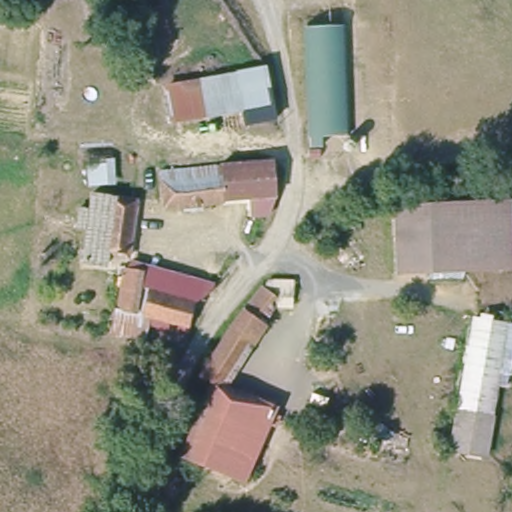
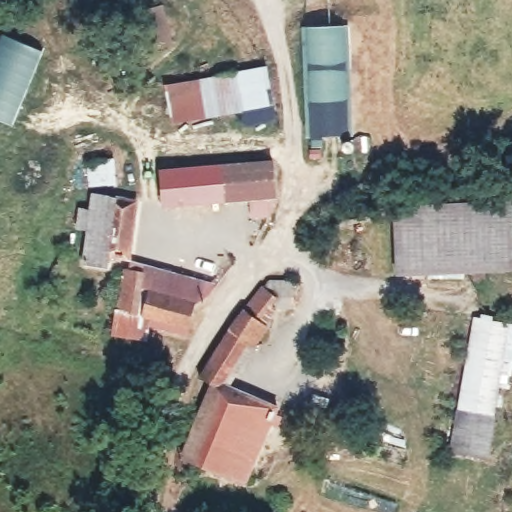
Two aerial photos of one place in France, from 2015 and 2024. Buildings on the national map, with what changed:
unchanged [(338,27),(341,136),(315,137),(316,149),(305,148),(302,27),(338,27)]
new [(43,51),(11,126),(0,121),(0,41),(2,35),(43,51)]
unchanged [(279,119),(247,125),(242,110),(175,121),(165,81),(268,64),(279,119)]
unchanged [(89,185),(86,161),(118,155),(117,184),(89,185)]
unchanged [(229,199),(229,206),(165,208),(165,202),(163,170),(173,169),(224,167),(224,160),(275,158),(277,198),(229,199)]
unchanged [(100,249),(113,252),(111,267),(87,265),(88,232),(78,232),(78,209),(92,209),(93,194),(101,194),(100,249)]
unchanged [(131,253),(113,252),(100,249),(101,194),(136,196),(131,253)]
unchanged [(508,198),(509,265),(405,267),(404,200),(508,198)]
unchanged [(127,314),(134,271),(151,274),(144,317),(127,314)]
unchanged [(197,376),(262,286),(291,286),(300,286),(299,307),(269,306),(258,323),(266,332),(253,350),(248,348),(222,387),(274,408),(270,420),(245,481),(183,455),(209,384),(197,376)]
unchanged [(183,335),(149,328),(151,318),(158,292),(204,303),(196,336),(183,335)]
unchanged [(512,324),(512,360),(493,455),(458,445),(484,317),(512,324)]

